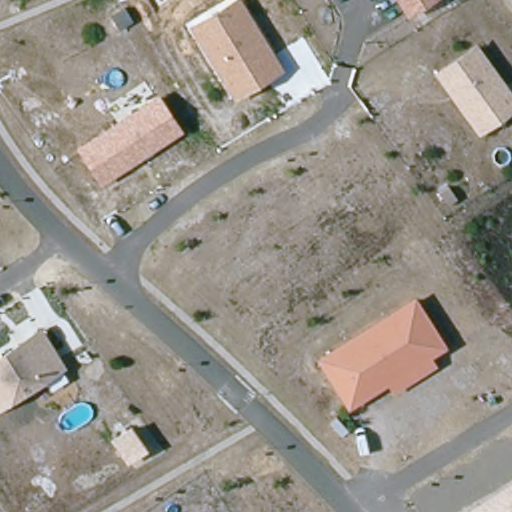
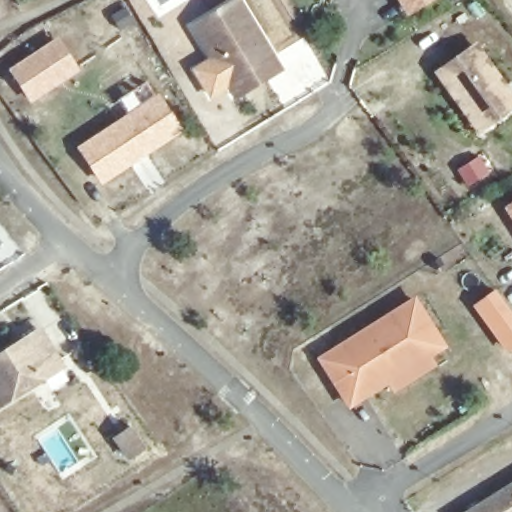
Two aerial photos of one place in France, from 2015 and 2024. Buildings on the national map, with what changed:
unchanged [(239,95),(232,84),(195,25),(236,0),(242,0),(272,48),(284,67),(239,95)]
unchanged [(411,13),(403,0),(431,0),(411,13)]
new [(80,69),(31,100),(9,68),(59,35),(80,69)]
unchanged [(437,74),(472,47),(512,101),(512,104),(496,116),(479,129),(451,91),(437,74)]
unchanged [(159,93),(181,125),(105,176),(83,145),(159,93)]
unchanged [(449,196),(440,184),(449,177),(458,190),(449,196)]
new [(512,202),(512,220),(504,207),(512,202)]
new [(512,349),(508,352),(472,305),(496,288),(512,311),(512,349)]
unchanged [(448,347),(352,408),(317,357),(416,292),(448,347)]
unchanged [(63,367),(39,382),(0,407),(0,356),(2,355),(40,331),(43,335),(59,361),(63,367)]
unchanged [(122,433),(139,421),(153,442),(137,454),(122,433)]
unchanged [(512,512),(462,512),(512,481),(512,512)]

